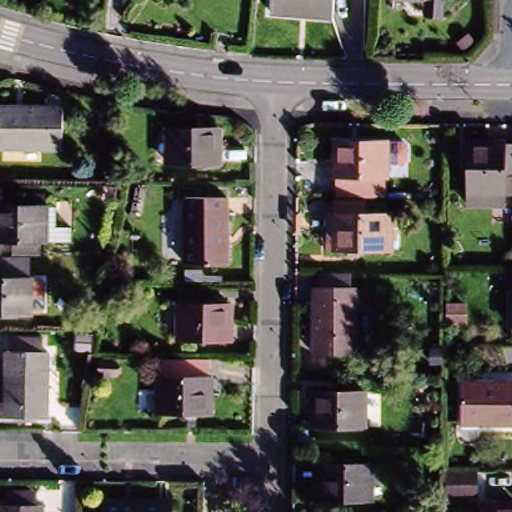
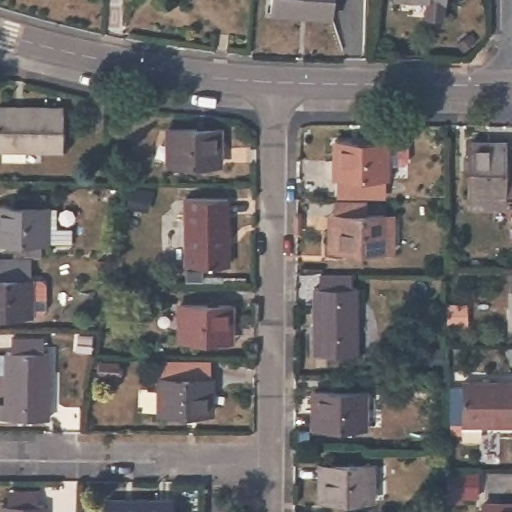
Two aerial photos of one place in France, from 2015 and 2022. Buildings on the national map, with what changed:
unchanged [(272,14),(272,0),(333,0),(333,16),(272,14)]
unchanged [(59,106),(60,151),(0,151),(0,106),(59,106)]
unchanged [(217,129),(217,166),(163,165),(163,128),(217,129)]
unchanged [(354,196),(331,196),(331,177),(328,177),(329,139),(384,141),(384,178),(381,178),(381,197),(354,196)]
unchanged [(512,149),(512,199),(502,199),(502,210),(464,211),(464,199),(465,146),(501,146),(501,149),(512,149)]
unchanged [(231,197),(231,264),(189,263),(190,197),(231,197)]
unchanged [(48,203),(49,239),(0,239),(0,203),(48,203)]
unchanged [(381,217),(382,251),(326,250),(326,215),(381,217)]
unchanged [(321,274),(353,275),(352,296),(358,296),(357,359),(314,358),(316,295),(321,295),(321,274)]
unchanged [(505,300),(504,277),(512,277),(512,333),(506,333),(505,300)]
unchanged [(27,283),(28,315),(0,314),(0,283),(27,283)]
unchanged [(233,305),(233,341),(181,341),(182,305),(233,305)]
unchanged [(46,418),(3,417),(3,356),(46,356),(46,418)]
unchanged [(206,381),(206,416),(156,415),(157,379),(206,381)]
unchanged [(463,439),(464,381),(512,382),(512,425),(479,425),(479,440),(463,439)]
unchanged [(363,393),(361,426),(310,425),(310,391),(363,393)]
unchanged [(371,467),(371,500),(320,500),(321,466),(371,467)]
unchanged [(468,470),(467,496),(437,496),(438,470),(468,470)]
unchanged [(41,512),(0,512),(0,505),(5,505),(4,492),(35,493),(35,506),(41,505),(41,512)]
unchanged [(171,501),(171,512),(105,512),(105,500),(171,501)]
unchanged [(512,512),(479,512),(479,503),(512,502),(512,512)]

